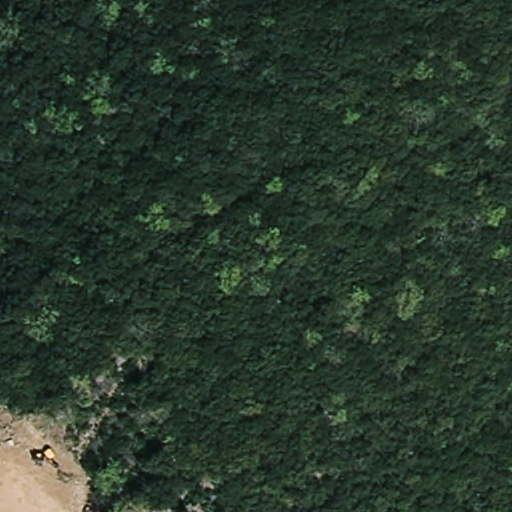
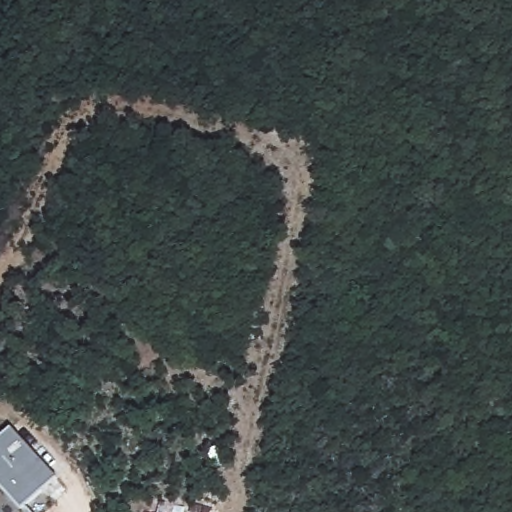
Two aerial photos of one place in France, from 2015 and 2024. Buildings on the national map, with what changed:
new [(21,509),(0,485),(0,437),(11,427),(56,476),(21,509)]

